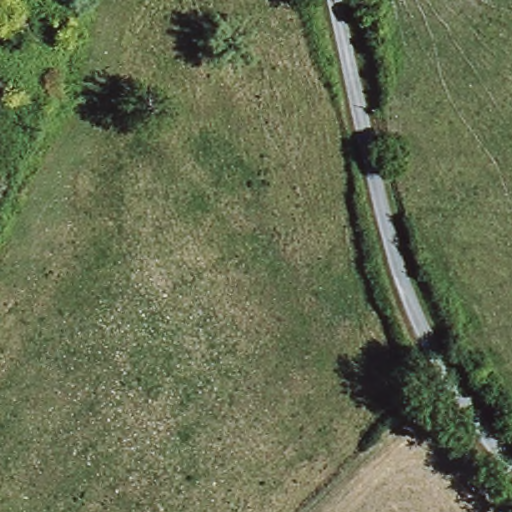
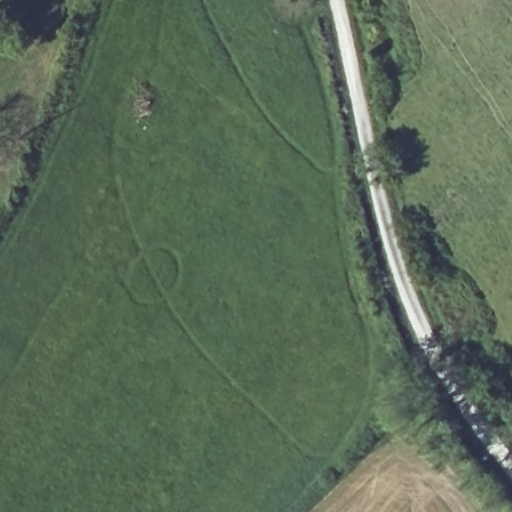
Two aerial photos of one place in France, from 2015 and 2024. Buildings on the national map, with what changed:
[]

